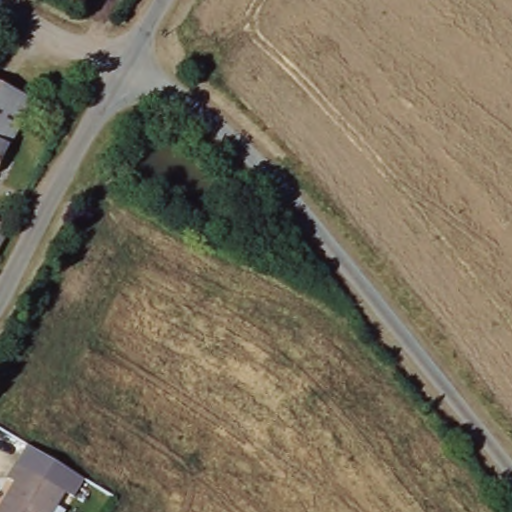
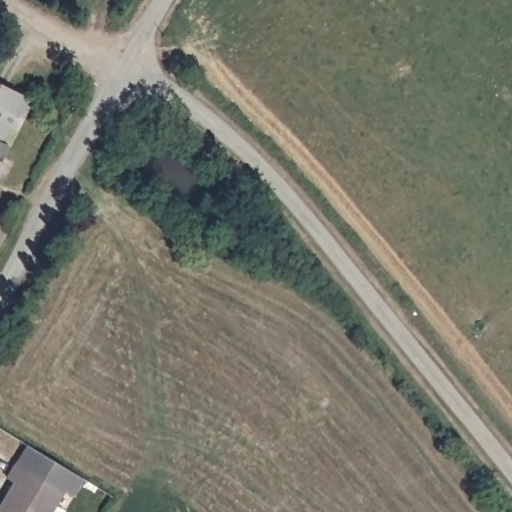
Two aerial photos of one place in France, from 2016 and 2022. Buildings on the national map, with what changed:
unchanged [(15,45),(0,65),(0,38),(15,45)]
unchanged [(32,101),(0,165),(0,85),(32,101)]
unchanged [(0,246),(0,224),(9,229),(0,246)]
unchanged [(56,499),(66,505),(62,512),(0,512),(0,504),(16,478),(7,473),(17,457),(65,485),(56,499)]

